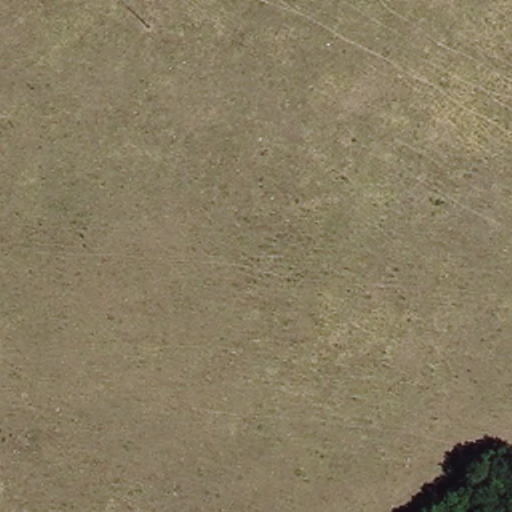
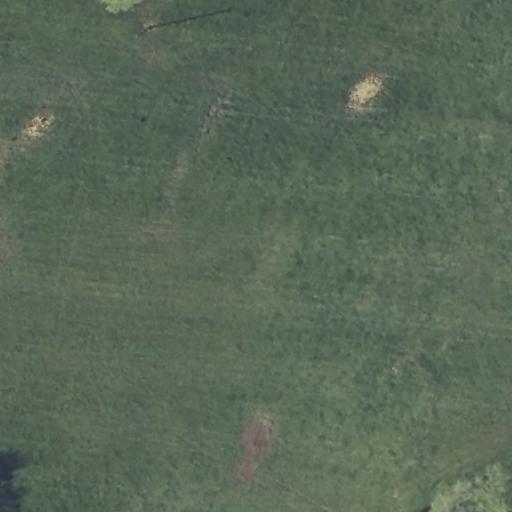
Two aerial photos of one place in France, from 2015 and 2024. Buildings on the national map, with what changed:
[]

